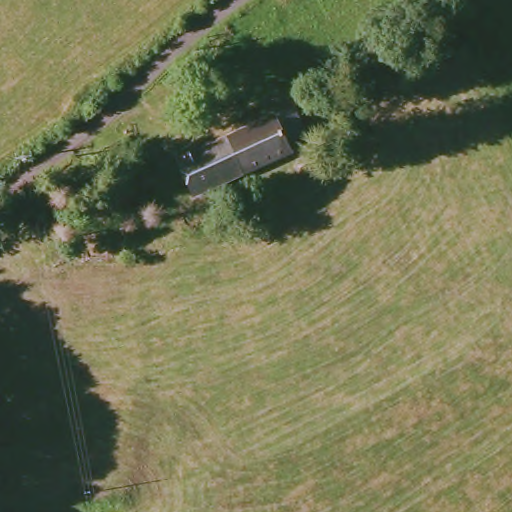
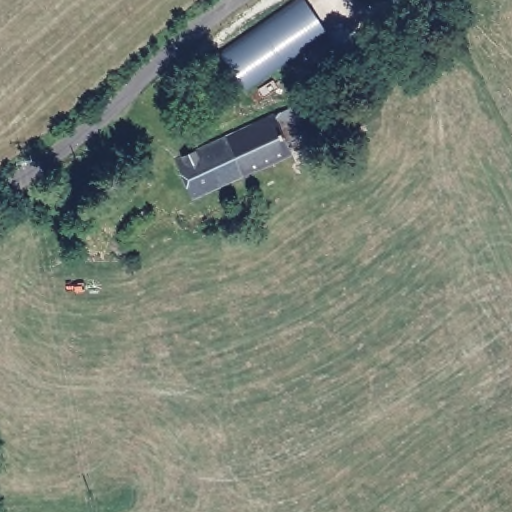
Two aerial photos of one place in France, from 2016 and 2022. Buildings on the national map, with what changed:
new [(243,95),(214,55),(296,0),(305,0),(331,37),(243,95)]
unchanged [(302,137),(286,146),(289,157),(192,199),(176,165),(291,112),(302,137)]

